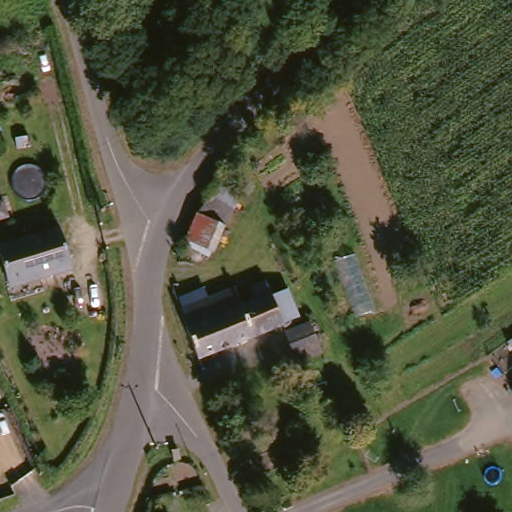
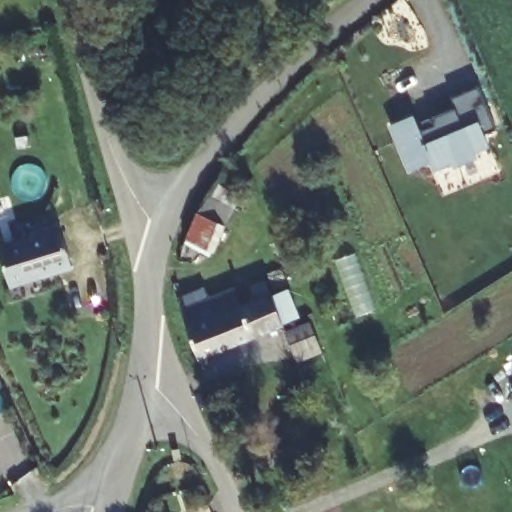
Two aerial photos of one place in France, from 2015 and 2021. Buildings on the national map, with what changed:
new [(418,133),(424,131),(421,124),(430,121),(455,111),(451,101),(478,90),(495,134),(487,137),(492,148),(475,154),(477,160),(455,169),(453,164),(435,171),(432,163),(410,171),(393,126),(412,118),(418,133)]
unchanged [(56,225),(55,218),(61,215),(64,223),(76,264),(46,274),(44,269),(14,278),(3,242),(56,225)]
unchanged [(267,288),(262,274),(277,267),(295,314),(207,350),(185,289),(209,279),(214,291),(243,278),(249,296),(267,288)]
unchanged [(305,354),(299,337),(293,323),(317,313),(323,326),(330,344),(305,354)]
unchanged [(511,395),(512,395),(512,397),(511,395)]

